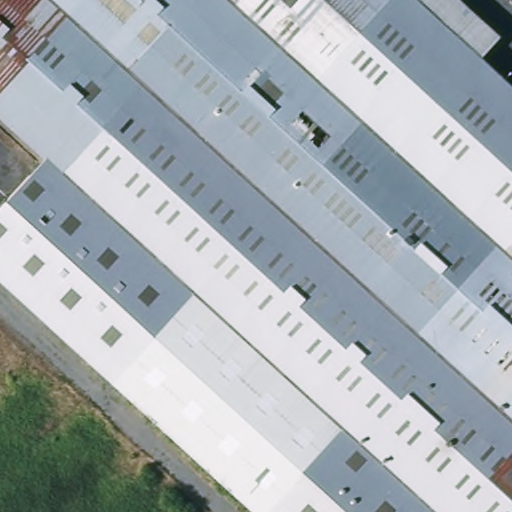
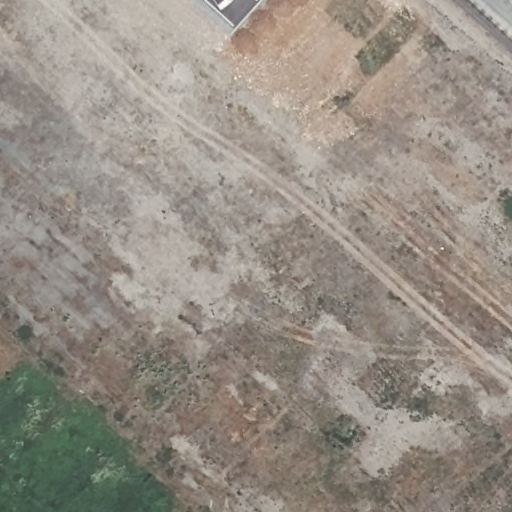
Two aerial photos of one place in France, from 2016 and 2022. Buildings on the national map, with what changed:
demolished [(197,294),(62,172),(51,161),(1,114),(0,114),(0,0),(416,0),(478,57),(512,87),(512,512),(437,512),(380,460),(343,427),(324,448),(266,512),(252,512),(114,386),(197,294)]
demolished [(197,294),(114,386),(0,283),(0,215),(51,161),(62,172),(197,294)]
demolished [(343,427),(380,460),(437,512),(266,512),(324,448),(343,427)]

